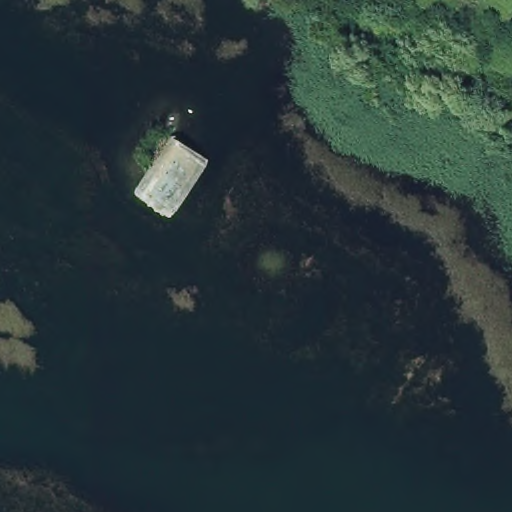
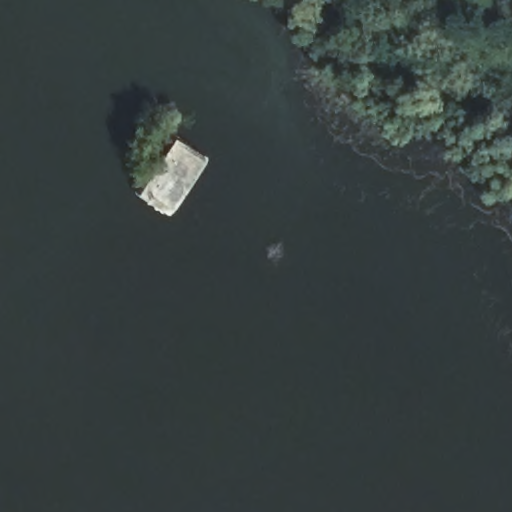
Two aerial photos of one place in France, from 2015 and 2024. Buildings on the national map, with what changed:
unchanged [(215,156),(170,220),(122,184),(170,130),(215,156)]

